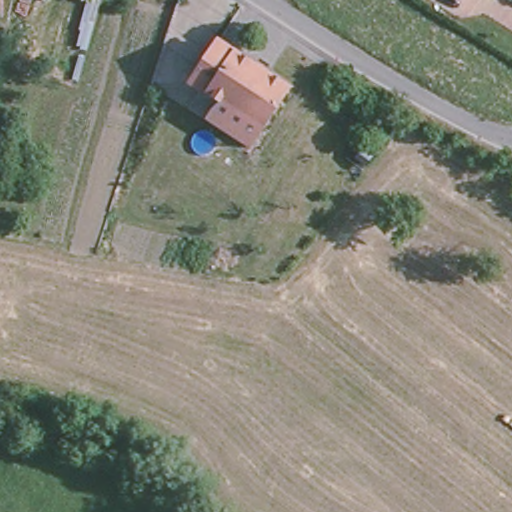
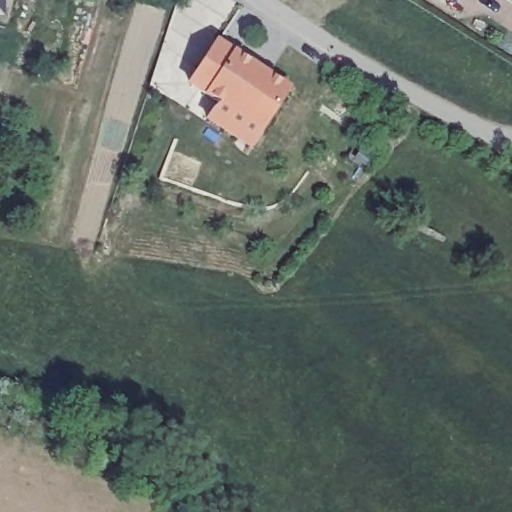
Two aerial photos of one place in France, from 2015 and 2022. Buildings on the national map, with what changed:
unchanged [(216,41),(287,87),(249,145),(207,118),(218,101),(189,83),(216,41)]

